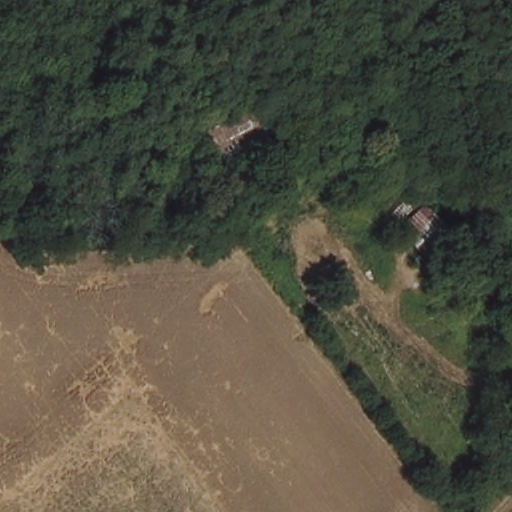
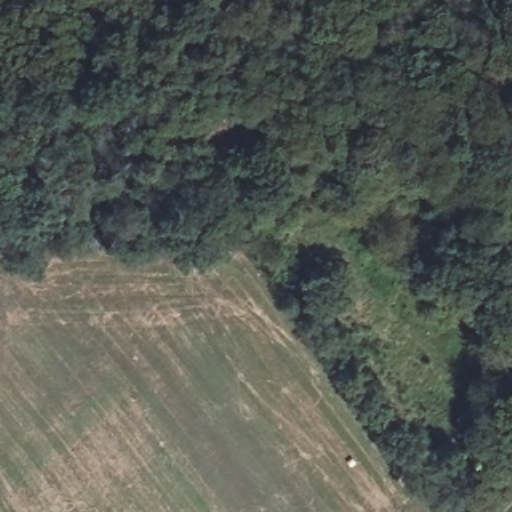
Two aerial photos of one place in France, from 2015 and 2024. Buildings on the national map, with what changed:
unchanged [(267,141),(242,151),(227,127),(252,110),(267,141)]
unchanged [(385,213),(403,196),(415,207),(422,201),(450,232),(427,257),(385,213)]

